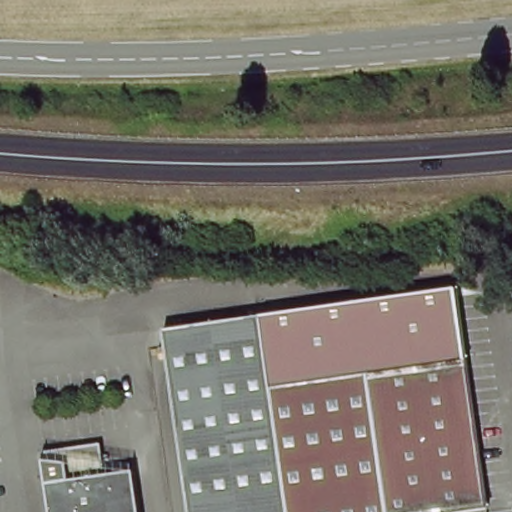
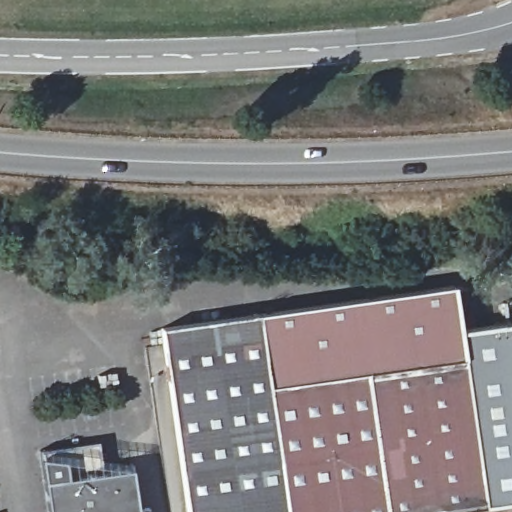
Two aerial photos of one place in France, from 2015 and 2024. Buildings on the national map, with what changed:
unchanged [(454,285),(465,356),(270,384),(260,312),(454,285)]
unchanged [(162,326),(260,312),(270,384),(465,356),(486,504),(430,512),(189,512),(162,326)]
new [(462,332),(512,325),(512,500),(486,504),(465,356),(462,332)]
unchanged [(45,482),(39,449),(91,444),(96,474),(45,482)]
unchanged [(132,472),(138,512),(49,512),(45,484),(132,472)]
demolished [(511,511),(511,512),(489,512),(511,511)]

